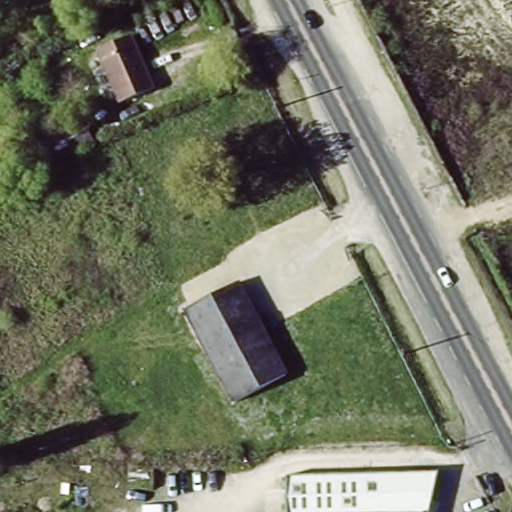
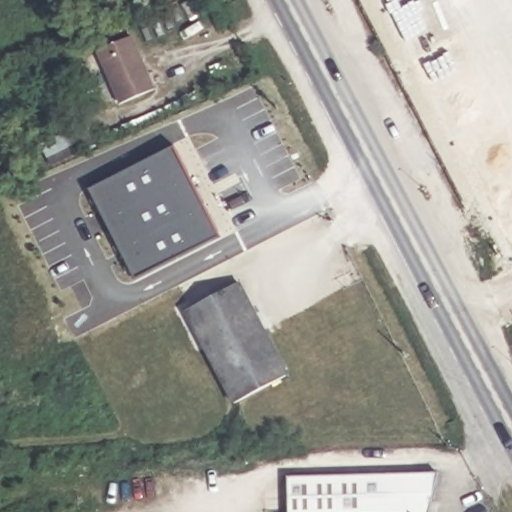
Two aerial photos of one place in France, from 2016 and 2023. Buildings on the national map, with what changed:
unchanged [(154,94),(120,109),(98,55),(132,41),(154,94)]
new [(136,276),(91,188),(178,145),(225,232),(136,276)]
unchanged [(283,380),(230,408),(181,315),(234,287),(283,380)]
unchanged [(283,482),(434,477),(426,512),(284,512),(283,482)]

